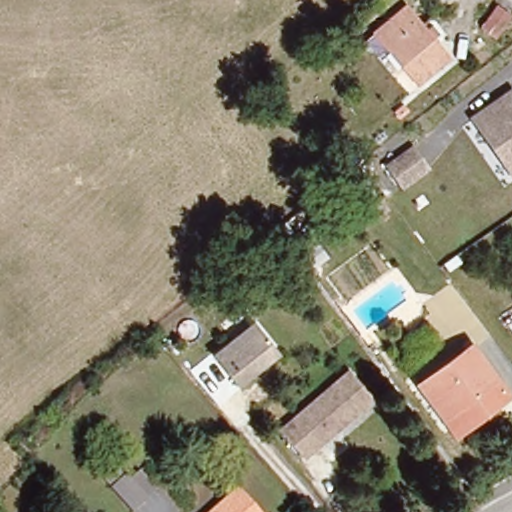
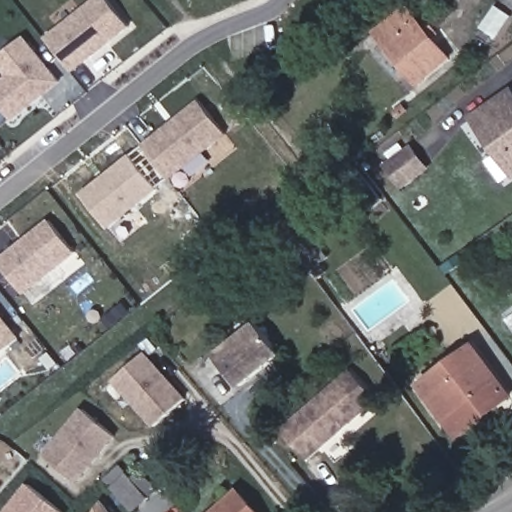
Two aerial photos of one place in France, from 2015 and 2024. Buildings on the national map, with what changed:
new [(93,0),(110,0),(132,27),(74,72),(45,37),(93,0)]
unchanged [(512,16),(503,30),(487,21),(500,0),(510,0),(512,2),(512,16)]
unchanged [(406,15),(449,68),(419,92),(375,39),(406,15)]
new [(7,75),(0,66),(0,56),(26,35),(63,81),(14,121),(0,104),(0,81),(7,75)]
unchanged [(512,172),(510,173),(471,113),(508,88),(512,95),(512,172)]
new [(199,99),(227,134),(170,180),(142,145),(199,99)]
unchanged [(429,169),(409,188),(390,166),(413,147),(429,169)]
new [(130,153),(158,189),(109,229),(81,193),(130,153)]
demolished [(379,209),(353,177),(370,164),(395,196),(379,209)]
new [(49,218),(77,253),(25,295),(0,264),(0,258),(49,218)]
new [(20,337),(0,354),(0,311),(20,337)]
unchanged [(239,388),(214,357),(255,324),(280,356),(239,388)]
unchanged [(419,382),(472,345),(496,380),(445,417),(419,382)]
new [(188,399),(157,425),(119,380),(150,354),(188,399)]
unchanged [(348,372),(373,401),(305,460),(280,431),(348,372)]
unchanged [(496,380),(508,397),(458,435),(445,417),(496,380)]
new [(73,485),(43,458),(84,412),(114,440),(73,485)]
unchanged [(107,480),(121,468),(124,472),(134,465),(153,487),(143,495),(129,507),(107,480)]
new [(64,512),(4,512),(28,482),(64,512)]
unchanged [(212,512),(237,490),(255,512),(212,512)]
new [(108,512),(98,512),(102,504),(108,512)]

